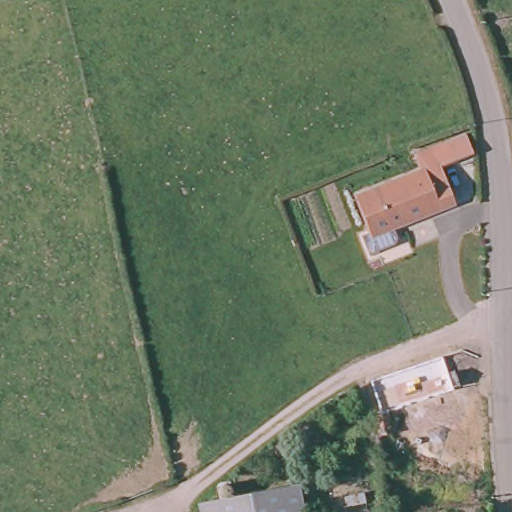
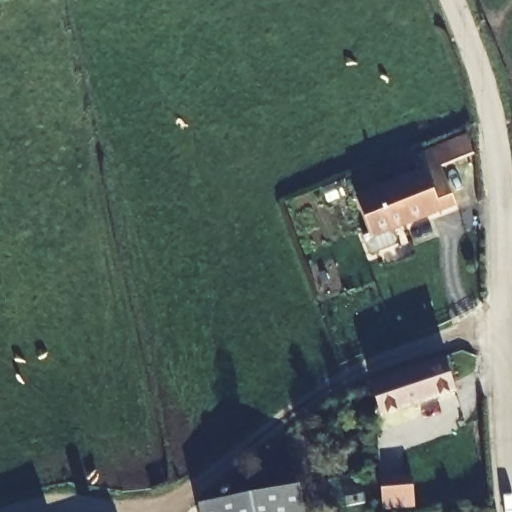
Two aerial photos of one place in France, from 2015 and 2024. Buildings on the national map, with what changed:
unchanged [(369,238),(353,200),(417,173),(411,156),(459,136),(467,154),(448,163),(447,160),(432,167),(447,205),(369,238)]
unchanged [(382,439),(377,403),(382,399),(379,374),(432,368),(444,367),(445,377),(446,382),(470,379),(471,391),(395,407),(398,436),(394,437),(392,438),(382,439)]
new [(381,512),(378,477),(412,473),(416,511),(402,512),(381,512)]
unchanged [(299,487),(304,512),(205,512),(204,504),(299,487)]

